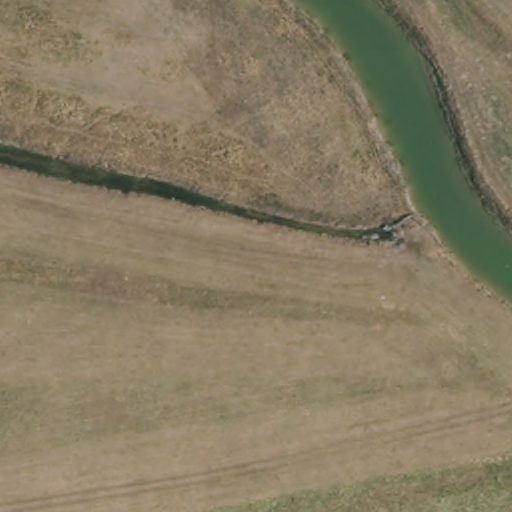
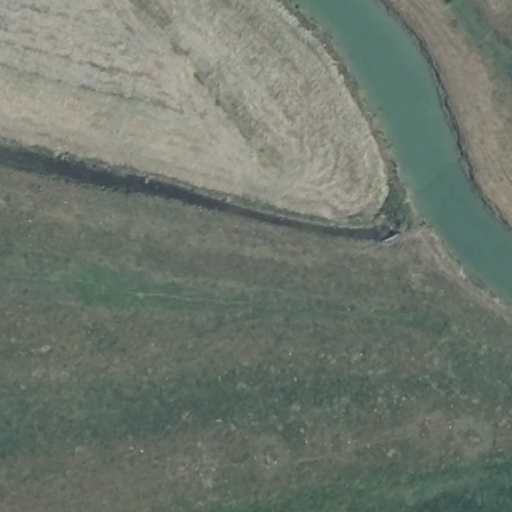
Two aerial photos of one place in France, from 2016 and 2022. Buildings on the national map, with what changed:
[]

